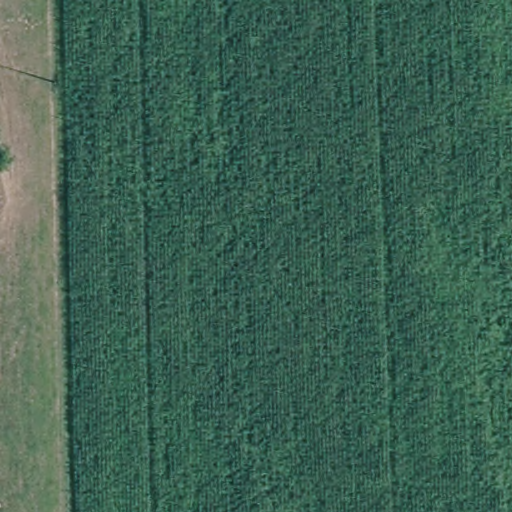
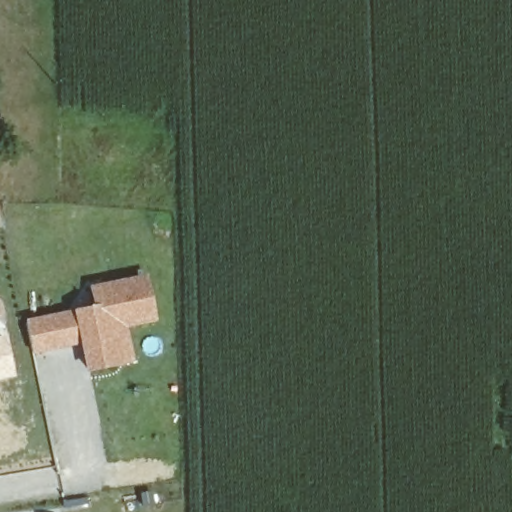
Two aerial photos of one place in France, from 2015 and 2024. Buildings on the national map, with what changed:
new [(157,322),(127,328),(133,362),(87,371),(82,346),(33,354),(26,320),(75,311),(92,306),(88,288),(148,274),(157,322)]
new [(5,332),(17,376),(0,380),(0,334),(5,332)]

